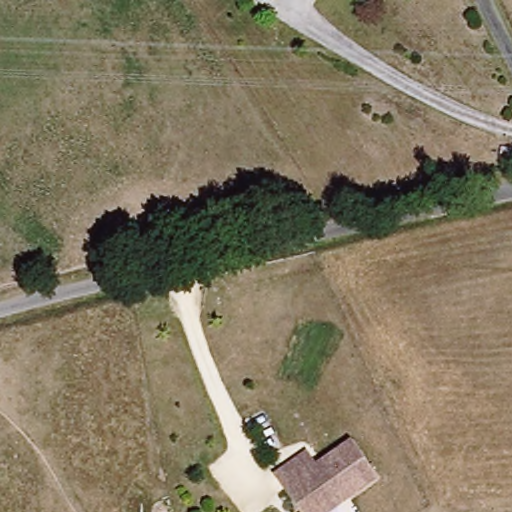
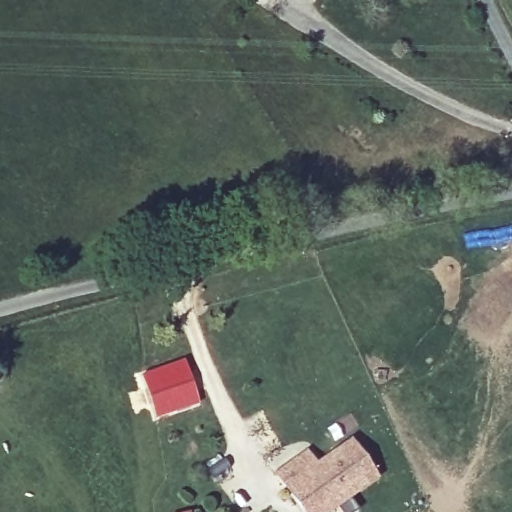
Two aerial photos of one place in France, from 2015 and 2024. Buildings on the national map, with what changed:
new [(183,358),(199,404),(155,420),(140,373),(183,358)]
unchanged [(337,512),(300,512),(288,491),(276,471),(308,451),(316,465),(353,442),(375,479),(346,496),(350,504),(337,512)]

